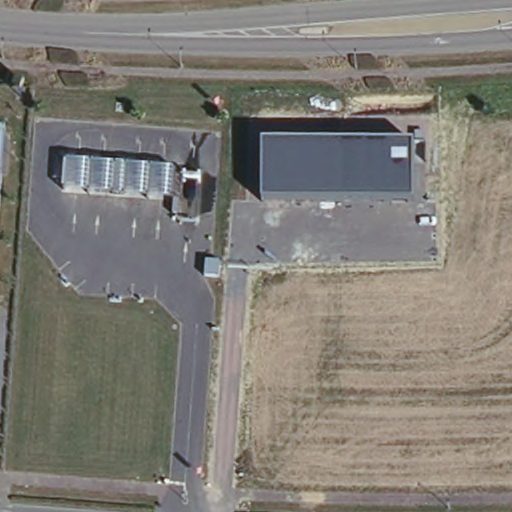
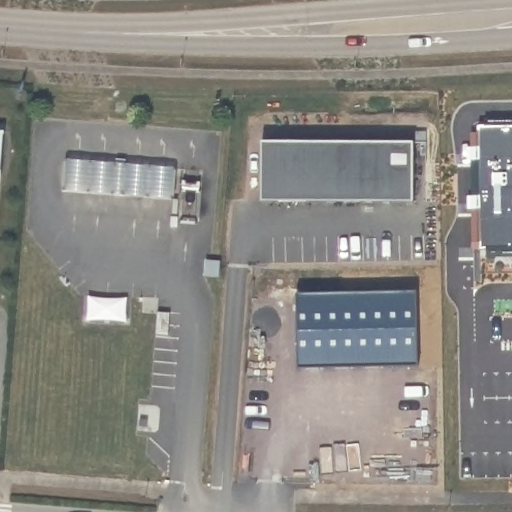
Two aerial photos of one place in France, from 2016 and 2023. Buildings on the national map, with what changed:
new [(512,127),(512,258),(483,259),(483,280),(474,281),(473,128),(512,127)]
unchanged [(0,166),(0,136),(2,136),(0,166)]
unchanged [(416,204),(263,204),(262,144),(417,144),(416,204)]
unchanged [(61,193),(65,160),(180,170),(178,203),(61,193)]
new [(412,294),(412,369),(289,369),(289,289),(412,294)]
new [(89,294),(128,296),(126,320),(88,319),(89,294)]

